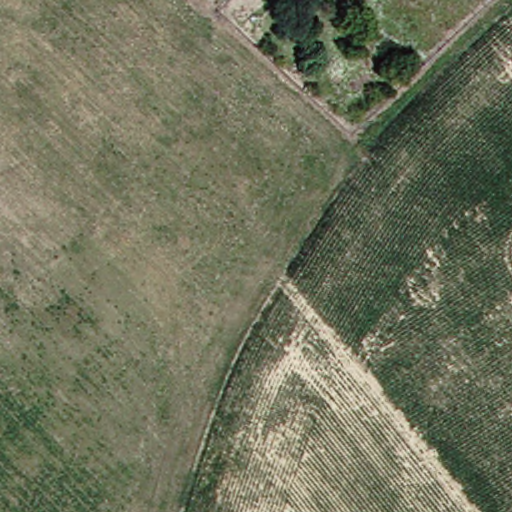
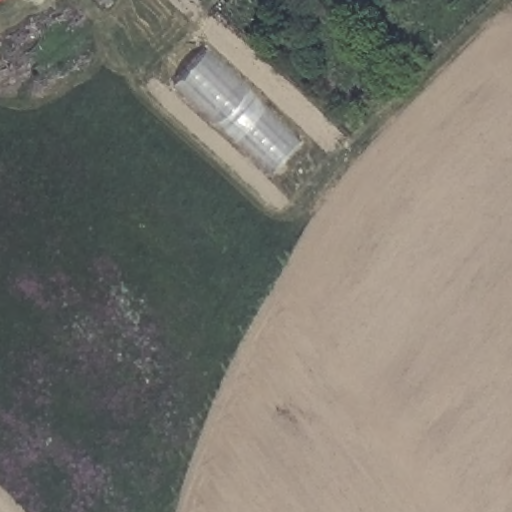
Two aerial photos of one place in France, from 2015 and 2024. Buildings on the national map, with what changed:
new [(174,87),(206,52),(299,141),(270,172),(174,87)]

